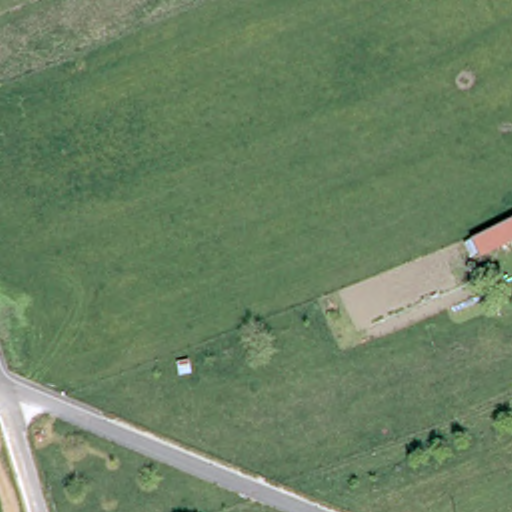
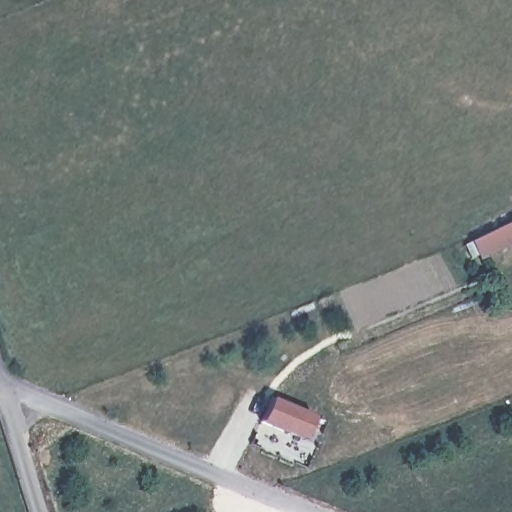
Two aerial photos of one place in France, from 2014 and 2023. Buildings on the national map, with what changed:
unchanged [(482,263),(472,239),(471,237),(512,217),(512,249),(482,263)]
new [(303,441),(260,422),(270,398),(313,417),(303,441)]

